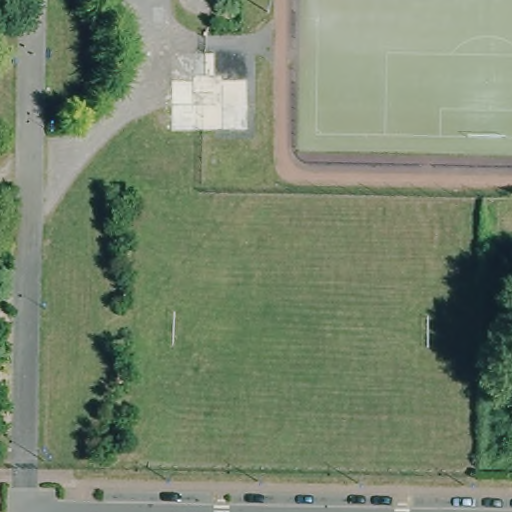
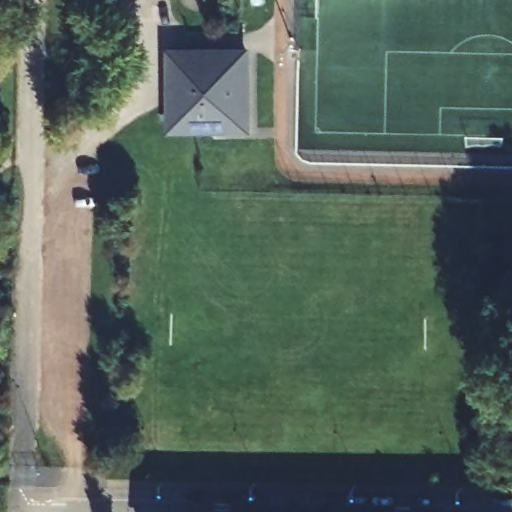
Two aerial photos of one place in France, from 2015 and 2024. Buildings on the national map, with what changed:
new [(251,45),(250,131),(166,129),(167,45),(251,45)]
demolished [(163,51),(247,50),(245,134),(162,134),(163,51)]

